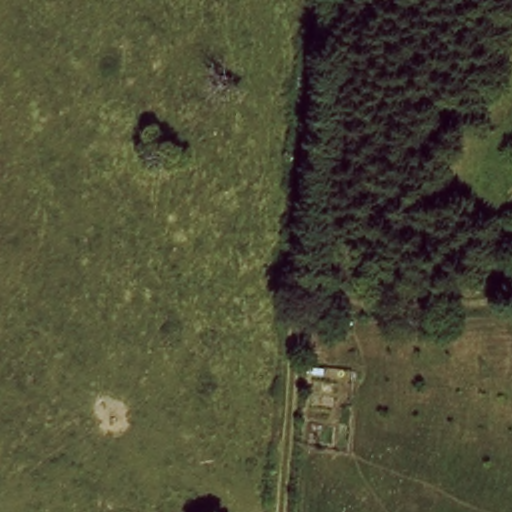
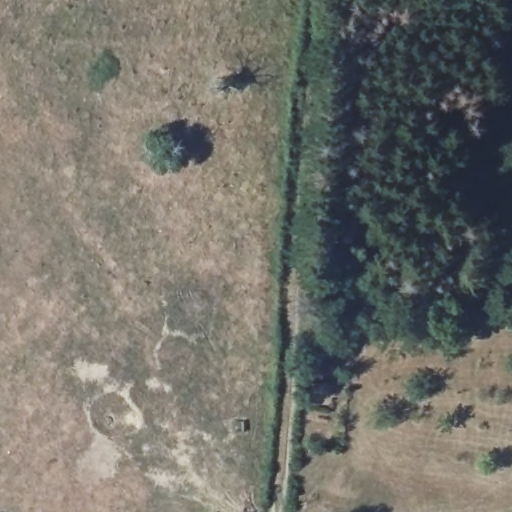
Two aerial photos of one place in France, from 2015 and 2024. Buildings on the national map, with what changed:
[]

